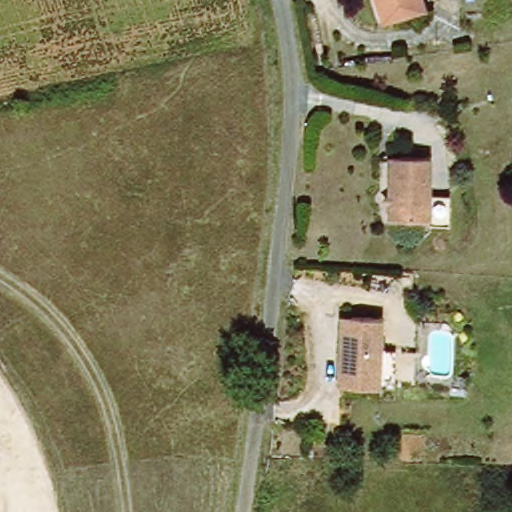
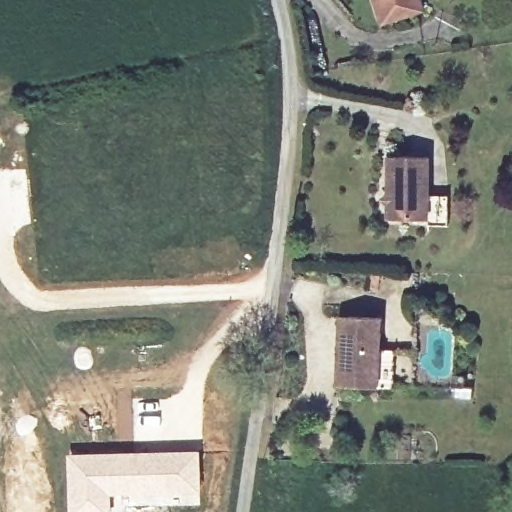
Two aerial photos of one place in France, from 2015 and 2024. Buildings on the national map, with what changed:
unchanged [(374,30),(365,0),(412,0),(417,18),(374,30)]
unchanged [(382,156),(426,156),(427,220),(383,221),(382,156)]
unchanged [(384,347),(399,349),(397,388),(382,387),(337,385),(342,315),(386,316),(384,347)]
new [(202,448),(201,504),(126,508),(127,512),(69,512),(67,451),(202,448)]

